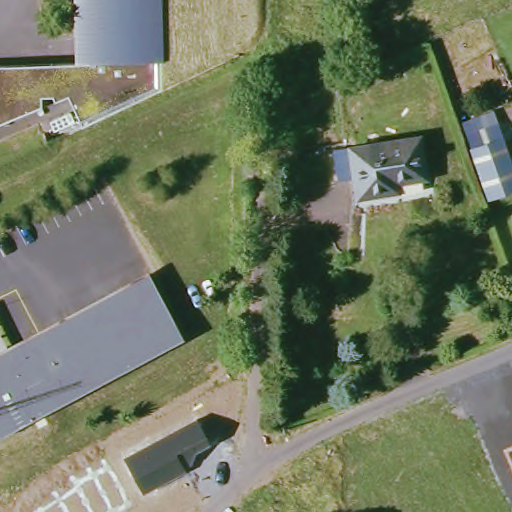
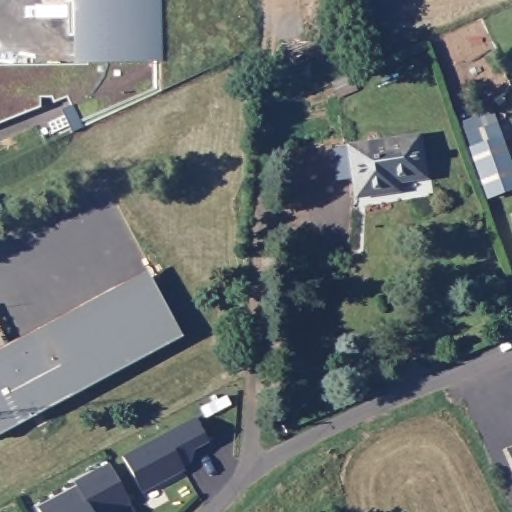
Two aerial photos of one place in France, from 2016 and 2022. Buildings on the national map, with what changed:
unchanged [(72,59),(75,0),(150,0),(146,100),(63,137),(49,107),(39,110),(22,107),(22,117),(0,128),(0,57),(72,59)]
unchanged [(329,82),(347,74),(354,89),(336,97),(329,82)]
unchanged [(349,148),(414,135),(422,175),(394,181),(395,190),(357,197),(349,148)]
unchanged [(468,161),(462,146),(494,135),(499,150),(512,185),(512,201),(486,210),(468,161)]
unchanged [(184,331),(0,434),(0,363),(4,360),(0,353),(0,331),(13,356),(154,277),(184,331)]
unchanged [(197,418),(210,443),(196,451),(192,465),(185,468),(186,470),(143,493),(123,456),(197,418)]
unchanged [(512,450),(512,460),(509,451),(512,450)]
new [(77,484),(75,480),(108,461),(128,498),(102,512),(99,512),(96,507),(91,510),(92,512),(40,512),(37,505),(77,484)]

